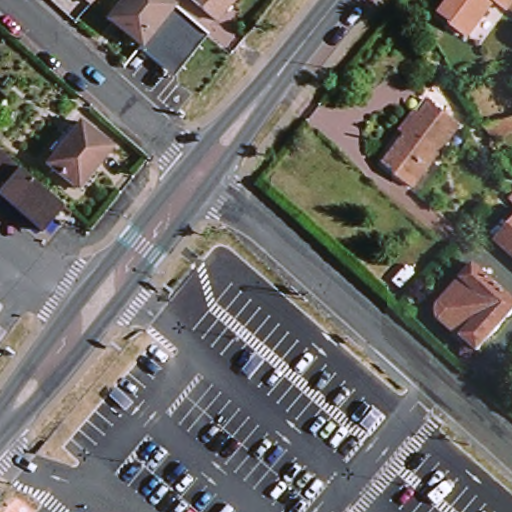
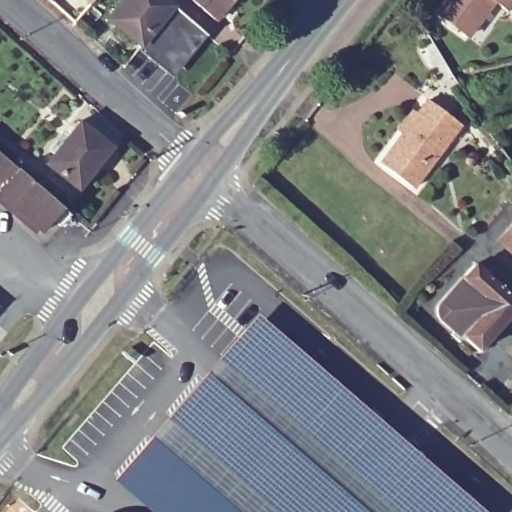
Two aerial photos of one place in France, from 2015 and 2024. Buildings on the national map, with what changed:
unchanged [(88,5),(83,0),(92,0),(88,5)]
unchanged [(177,6),(147,48),(113,23),(130,0),(169,0),(177,6)]
unchanged [(217,20),(194,0),(234,0),(217,20)]
unchanged [(508,10),(507,12),(497,6),(488,8),(470,34),(445,16),(448,15),(442,10),(449,0),(512,0),(512,12),(508,10)]
unchanged [(465,130),(418,191),(386,167),(407,140),(401,135),(417,113),(424,119),(433,107),(465,130)]
unchanged [(112,145),(80,186),(49,162),(81,121),(112,145)]
unchanged [(489,142),(486,138),(481,130),(512,122),(512,136),(489,142)]
unchanged [(62,226),(52,220),(41,232),(0,196),(0,152),(74,215),(62,226)]
unchanged [(497,237),(512,221),(512,250),(497,237)]
unchanged [(442,298),(476,262),(512,295),(512,318),(482,349),(442,318),(441,307),(442,298)]
new [(258,315),(485,512),(153,512),(116,479),(258,315)]
demolished [(387,490),(398,479),(412,486),(424,475),(427,480),(405,506),(412,512),(361,512),(383,487),(387,490)]
demolished [(459,512),(485,485),(512,510),(512,512),(459,512)]

